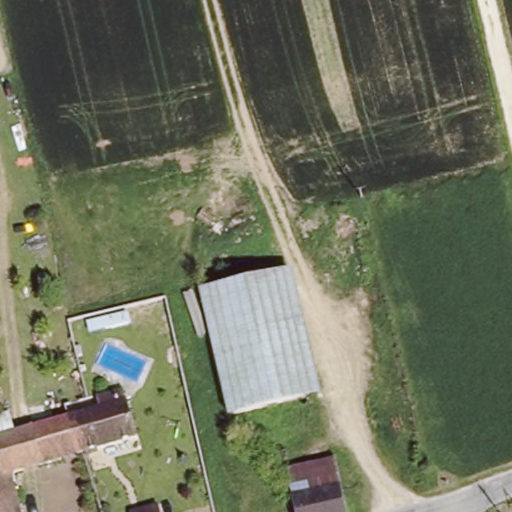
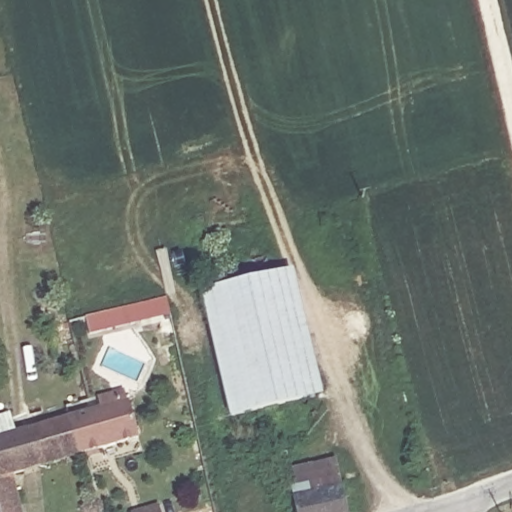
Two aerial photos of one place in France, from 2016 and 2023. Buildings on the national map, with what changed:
unchanged [(325,394),(235,416),(203,287),(292,264),(325,394)]
unchanged [(75,414),(97,409),(130,401),(139,434),(83,448),(75,414)]
unchanged [(10,467),(22,512),(3,512),(0,500),(0,411),(11,408),(16,429),(75,414),(83,448),(10,467)]
unchanged [(289,478),(340,463),(351,502),(314,512),(299,512),(289,478)]
unchanged [(0,500),(3,512),(0,512),(0,500)]

